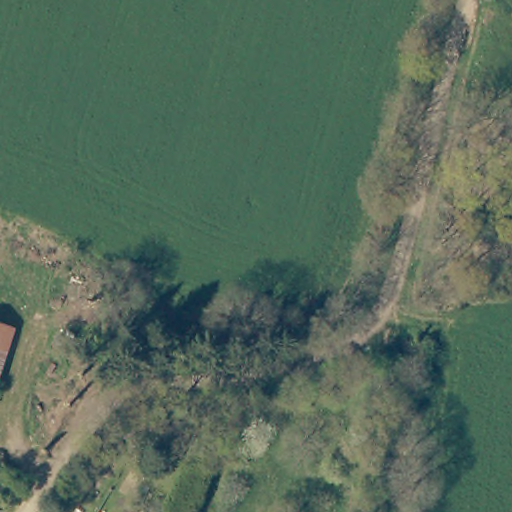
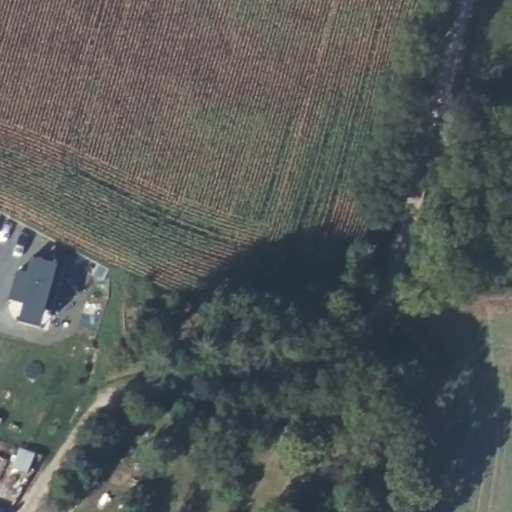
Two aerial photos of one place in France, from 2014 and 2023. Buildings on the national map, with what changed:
new [(53,312),(46,310),(41,330),(18,324),(23,305),(8,300),(19,267),(33,272),(37,257),(58,263),(65,266),(53,312)]

